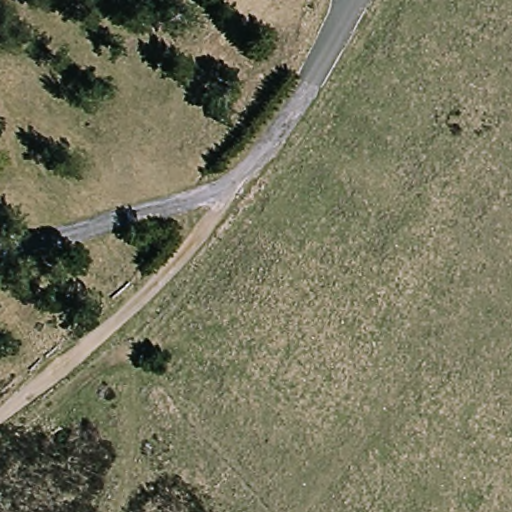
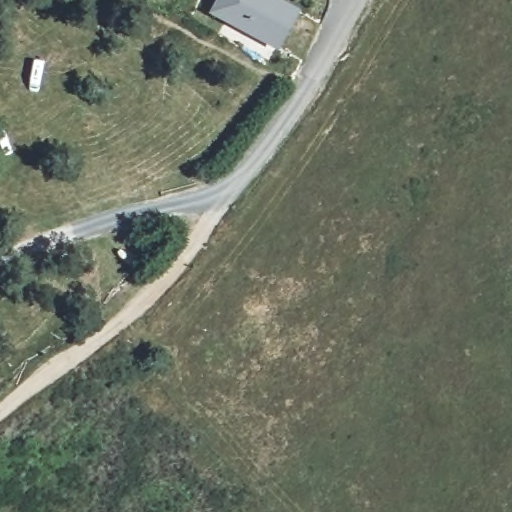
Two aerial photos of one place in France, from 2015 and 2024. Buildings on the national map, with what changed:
new [(300,10),(279,51),(209,14),(216,0),(282,0),(300,10)]

